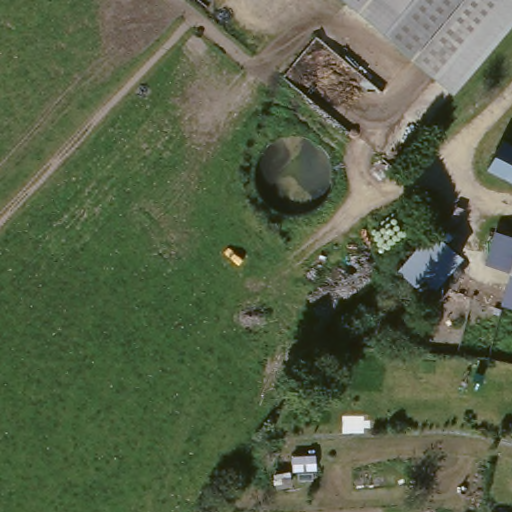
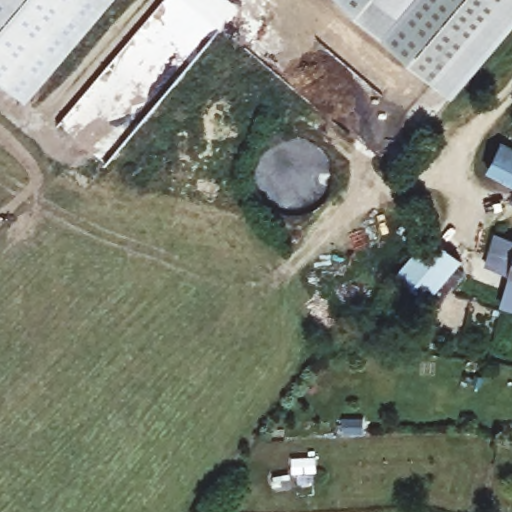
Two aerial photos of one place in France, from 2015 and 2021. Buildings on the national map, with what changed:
new [(103,0),(24,90),(0,69),(0,0),(103,0)]
unchanged [(464,0),(512,0),(512,30),(454,97),(344,0),(379,0),(426,42),(464,0)]
unchanged [(379,0),(464,0),(426,42),(379,0)]
unchanged [(512,147),(512,183),(489,171),(495,160),(504,143),(507,145),(512,147)]
unchanged [(425,239),(428,235),(456,260),(450,267),(459,275),(432,306),(396,274),(394,273),(425,239)]
unchanged [(484,269),(493,235),(512,240),(512,277),(508,276),(484,269)]
unchanged [(508,276),(512,277),(512,309),(500,306),(508,276)]

